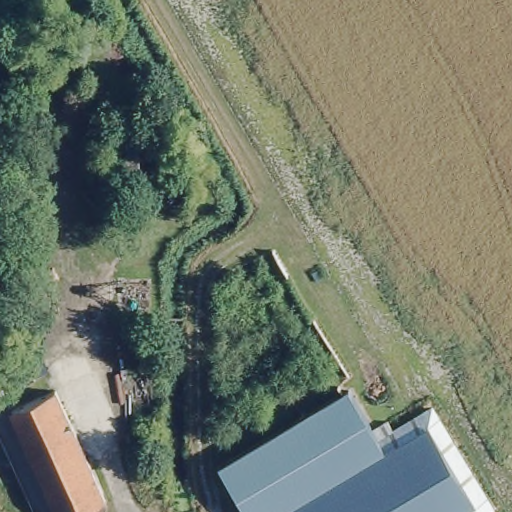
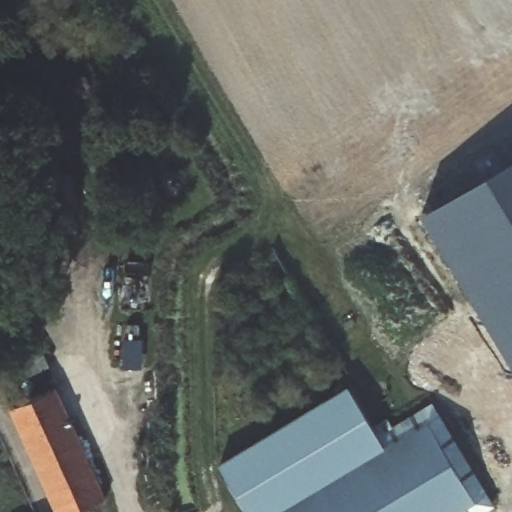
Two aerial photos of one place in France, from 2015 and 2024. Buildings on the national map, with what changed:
new [(512,157),(512,361),(421,212),(512,157)]
unchanged [(217,463),(347,385),(370,420),(238,496),(217,463)]
unchanged [(73,512),(58,512),(11,404),(50,389),(52,388),(103,499),(73,512)]
unchanged [(370,420),(383,412),(390,424),(428,403),(490,503),(476,512),(247,512),(238,496),(370,420)]

